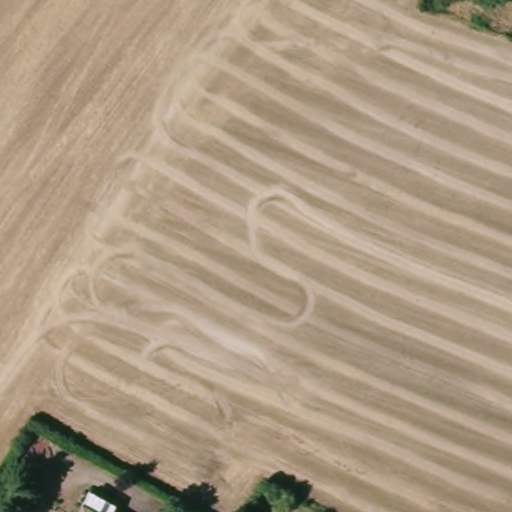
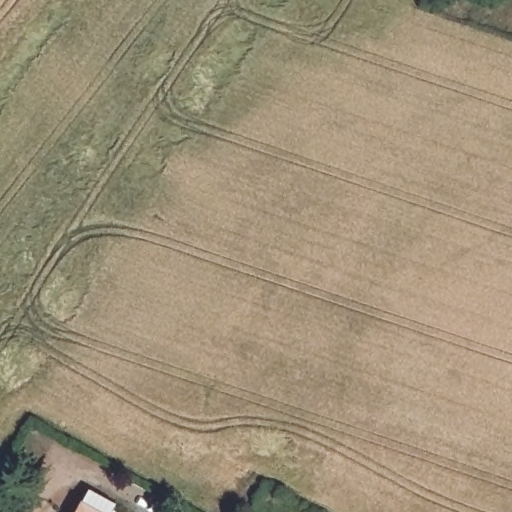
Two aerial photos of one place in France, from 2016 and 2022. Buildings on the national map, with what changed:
unchanged [(82,504),(90,491),(115,505),(111,512),(77,512),(82,504)]

